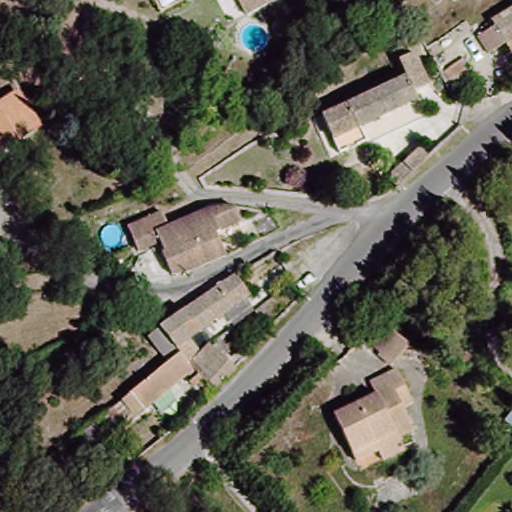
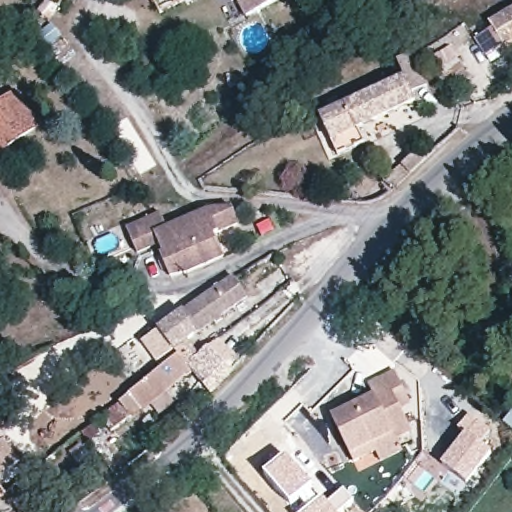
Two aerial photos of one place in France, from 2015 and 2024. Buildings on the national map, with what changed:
unchanged [(176,0),(185,0),(179,4),(176,0)]
unchanged [(282,1),(265,11),(261,2),(240,7),(237,0),(282,0),(282,1)]
unchanged [(512,42),(504,30),(490,39),(481,24),(512,5),(512,42)]
unchanged [(453,89),(476,72),(488,88),(465,106),(453,89)]
unchanged [(407,109),(346,135),(350,148),(330,156),(313,116),(393,83),(394,82),(407,109)]
unchanged [(0,155),(0,107),(16,98),(38,129),(0,155)]
unchanged [(408,194),(398,195),(390,183),(437,141),(451,154),(408,194)]
unchanged [(194,211),(227,202),(234,202),(243,216),(220,230),(232,251),(205,265),(195,266),(187,250),(184,246),(180,238),(172,223),(194,211)]
unchanged [(180,238),(184,246),(187,250),(195,266),(176,268),(166,251),(171,248),(167,239),(147,251),(140,241),(133,228),(139,224),(165,209),(172,223),(180,238)]
unchanged [(262,231),(254,219),(266,212),(279,223),(262,231)]
unchanged [(97,418),(159,366),(140,342),(158,327),(236,274),(250,302),(184,343),(195,356),(206,346),(233,375),(210,399),(187,375),(110,435),(97,418)]
unchanged [(391,363),(361,333),(379,311),(411,337),(391,363)]
unchanged [(388,466),(380,456),(355,472),(329,428),(372,402),(363,384),(388,371),(403,397),(393,404),(413,436),(397,446),(403,457),(388,466)]
new [(465,434),(457,428),(468,415),(490,431),(481,444),(492,453),(468,485),(441,465),(465,434)]
new [(312,485),(309,489),(318,500),(323,497),(327,502),(344,489),(353,500),(340,512),(306,512),(307,511),(297,498),(291,505),(263,474),(287,456),(312,485)]

